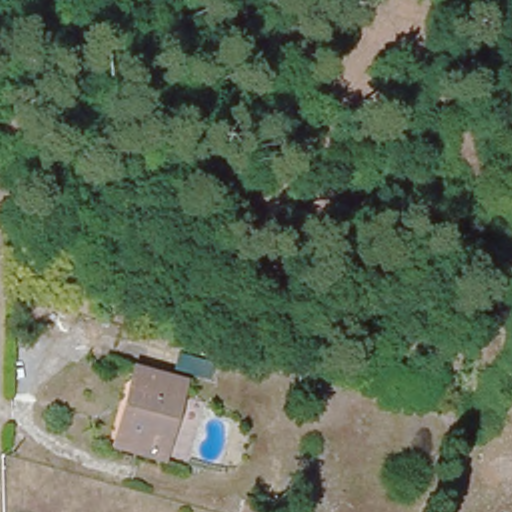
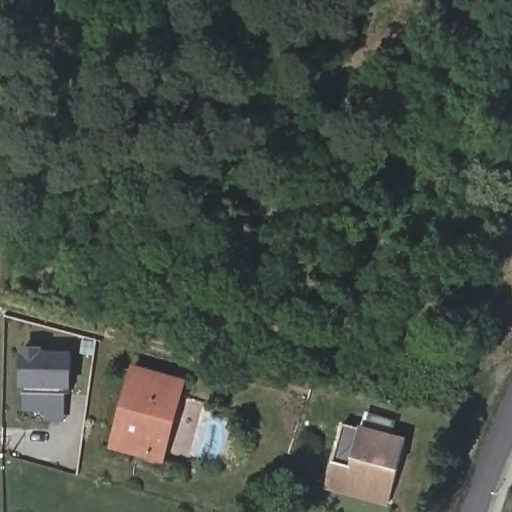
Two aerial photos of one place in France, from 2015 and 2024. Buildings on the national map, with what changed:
new [(24,392),(25,388),(21,387),(20,346),(44,346),(44,352),(71,352),(71,387),(70,392),(24,392)]
unchanged [(124,403),(134,367),(182,381),(162,457),(135,449),(112,442),(124,403)]
new [(333,461),(343,423),(359,425),(407,437),(390,506),(326,490),(333,461)]
unchanged [(273,502),(271,512),(238,512),(242,493),(273,502)]

